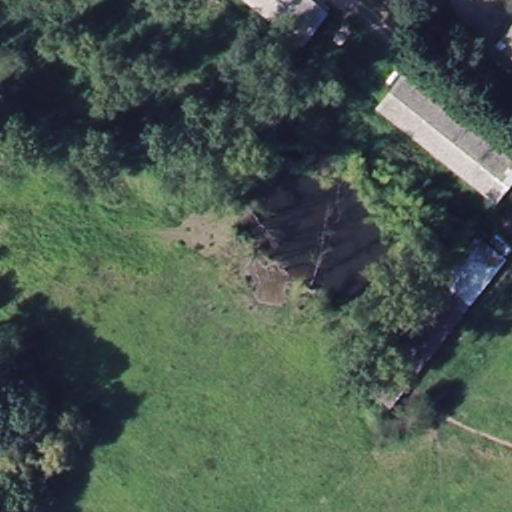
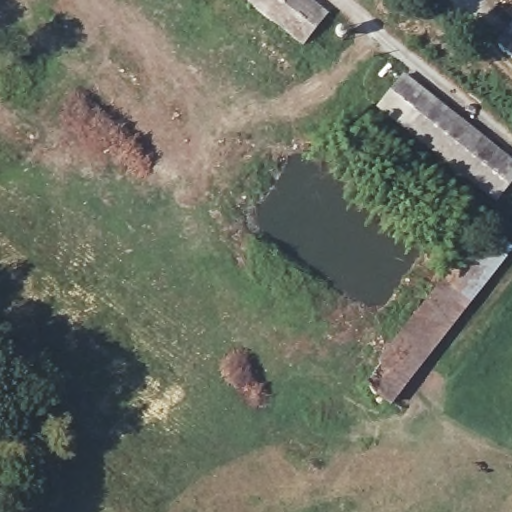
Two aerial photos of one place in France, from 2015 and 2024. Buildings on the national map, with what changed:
unchanged [(327,9),(301,41),(249,0),(316,0),(327,9)]
unchanged [(503,40),(512,29),(512,60),(497,49),(503,40)]
unchanged [(512,179),(489,206),(471,191),(377,113),(410,73),(505,150),(512,156),(512,179)]
unchanged [(442,284),(473,306),(392,410),(360,387),(442,284)]

